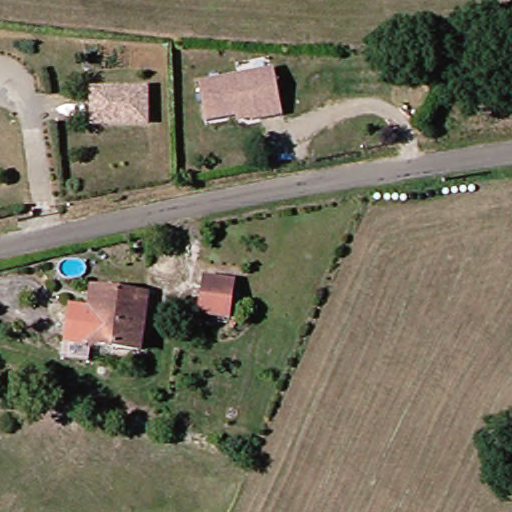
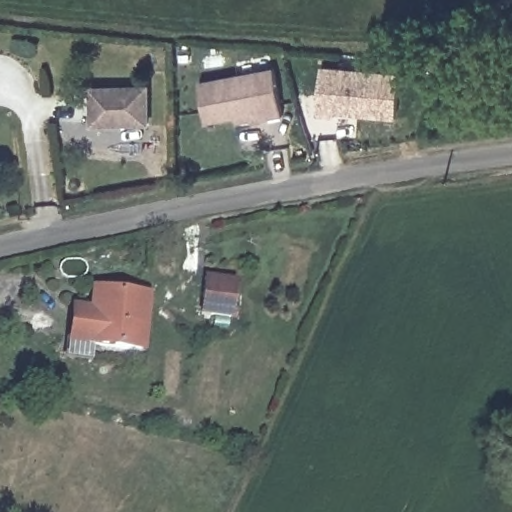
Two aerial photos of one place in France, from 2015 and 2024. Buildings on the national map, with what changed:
unchanged [(285,111),(255,119),(246,114),(209,122),(199,84),(274,65),(285,111)]
new [(319,111),(324,65),(401,72),(397,118),(319,111)]
unchanged [(154,120),(98,120),(98,85),(154,84),(154,120)]
unchanged [(210,281),(242,286),(235,326),(204,320),(210,281)]
unchanged [(99,314),(95,312),(99,291),(151,300),(147,327),(141,355),(94,347),(99,314)]

